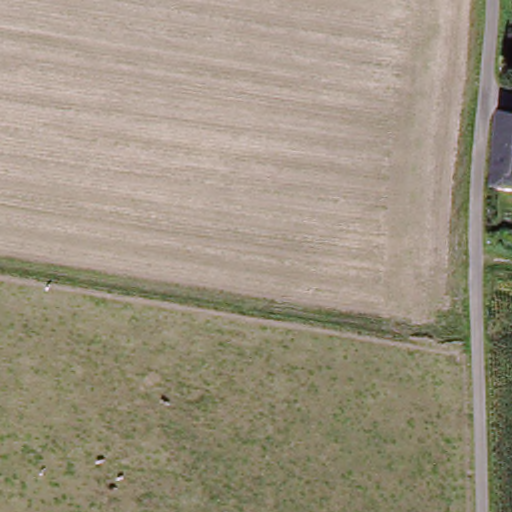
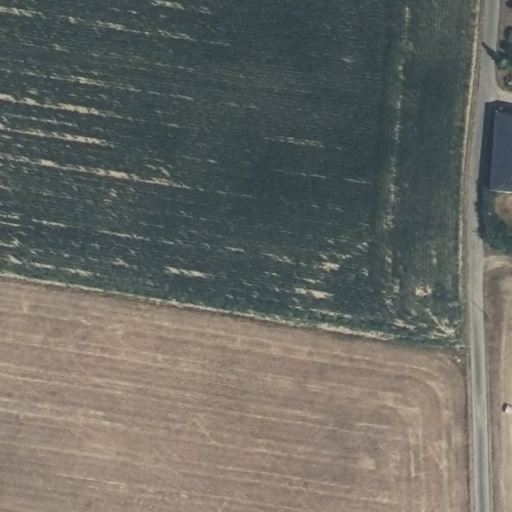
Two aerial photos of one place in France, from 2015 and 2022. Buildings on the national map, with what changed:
unchanged [(484,200),(502,107),(512,110),(512,206),(484,200)]

